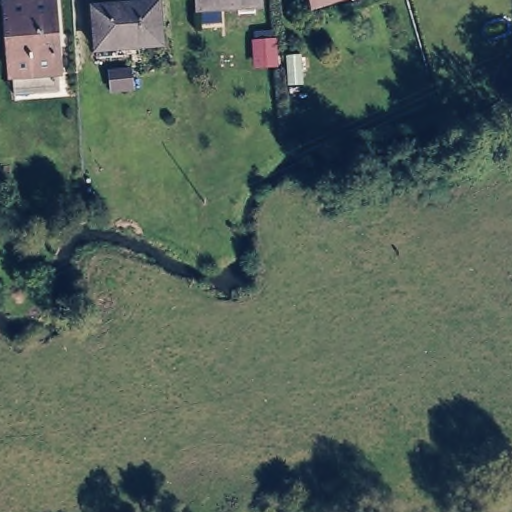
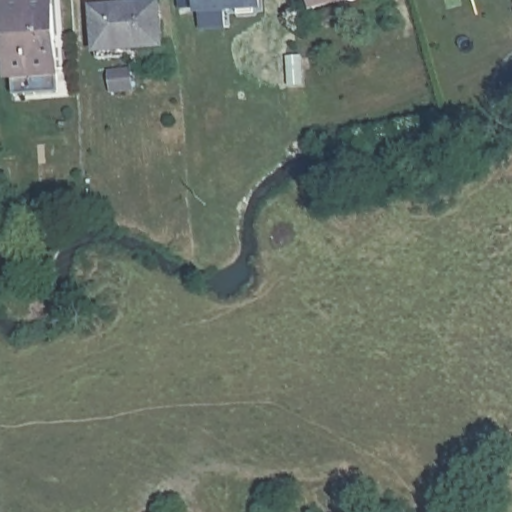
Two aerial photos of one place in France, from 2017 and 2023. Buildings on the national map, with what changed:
unchanged [(16,66),(8,0),(52,0),(60,62),(61,82),(18,85),(16,66)]
unchanged [(200,6),(199,0),(259,0),(259,1),(200,6)]
unchanged [(349,0),(308,12),(306,0),(349,0)]
unchanged [(156,5),(161,47),(99,52),(95,10),(156,5)]

